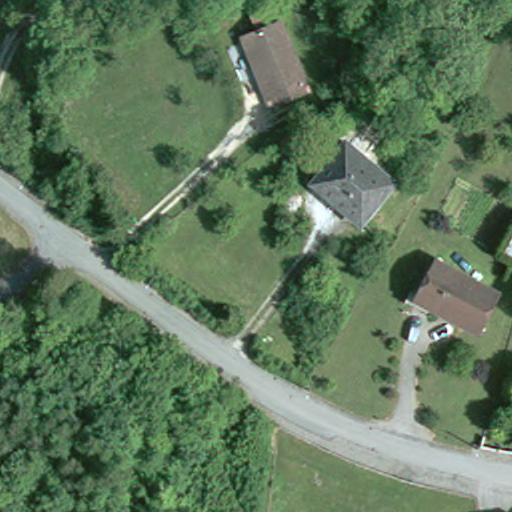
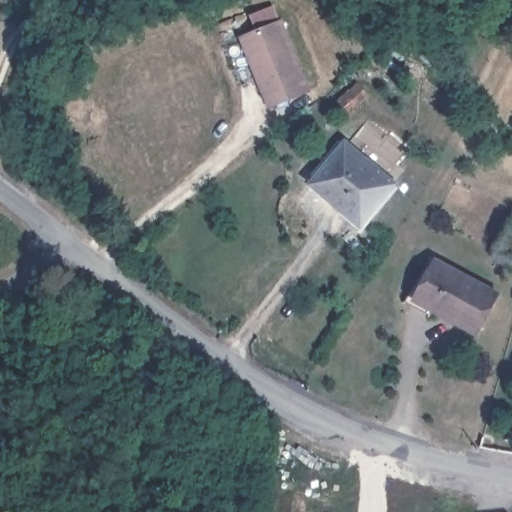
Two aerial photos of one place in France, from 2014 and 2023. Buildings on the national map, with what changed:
unchanged [(260,26),(254,9),(276,1),(282,17),(285,16),(314,85),(274,101),(245,32),(260,26)]
unchanged [(345,142),(355,150),(386,177),(394,184),(361,225),(351,218),(339,208),(343,204),(322,187),(314,180),(345,142)]
unchanged [(435,260),(498,294),(476,334),(413,300),(435,260)]

